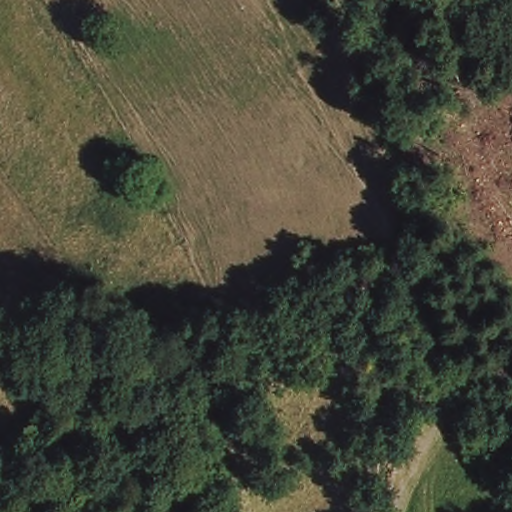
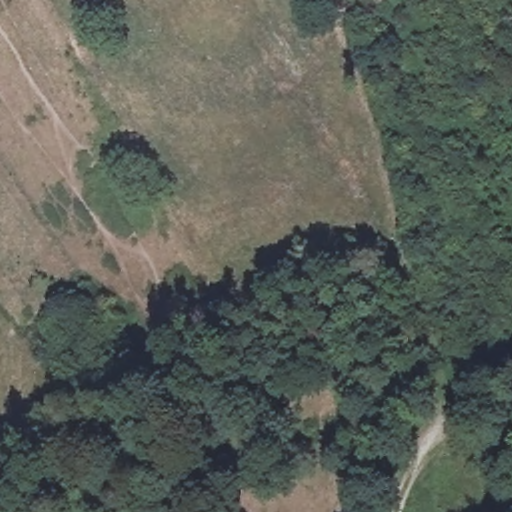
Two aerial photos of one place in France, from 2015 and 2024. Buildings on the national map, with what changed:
unchanged [(456,512),(436,512),(435,502),(455,500),(456,512)]

